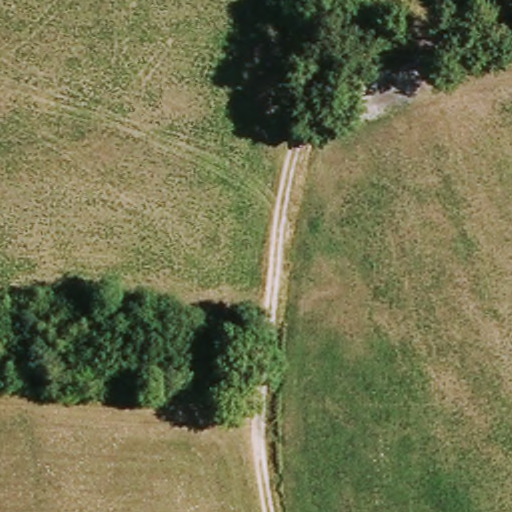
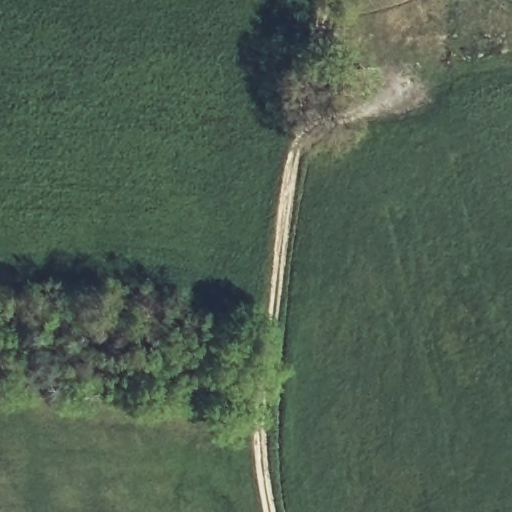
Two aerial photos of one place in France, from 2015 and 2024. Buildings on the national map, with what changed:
unchanged [(371,78),(348,82),(345,57),(367,53),(371,78)]

